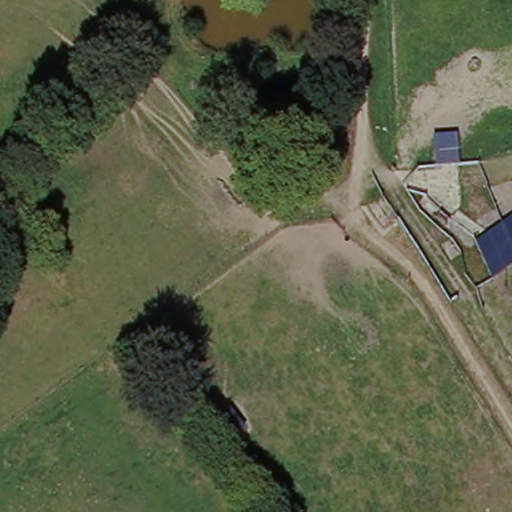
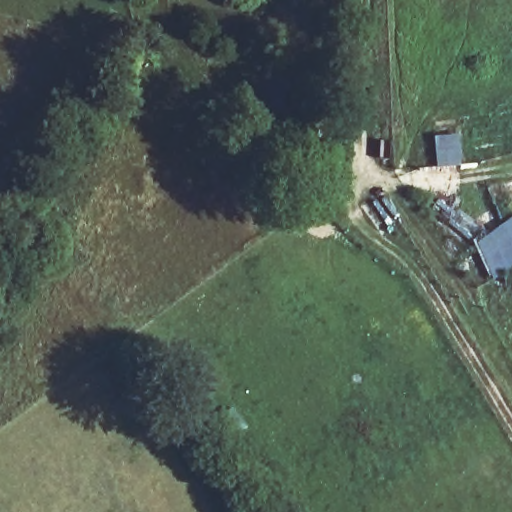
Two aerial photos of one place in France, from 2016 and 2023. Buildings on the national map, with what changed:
unchanged [(483,235),(512,218),(512,264),(501,272),(483,235)]

